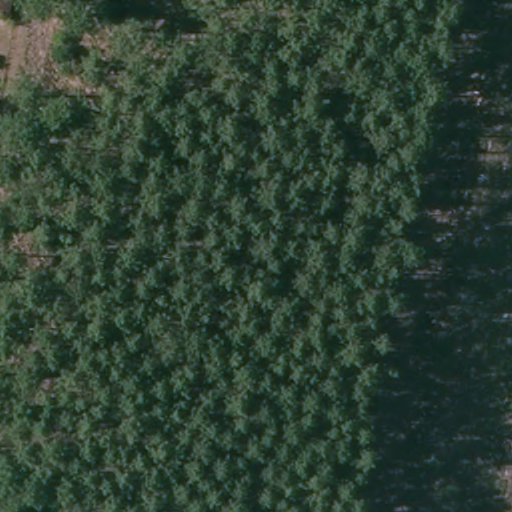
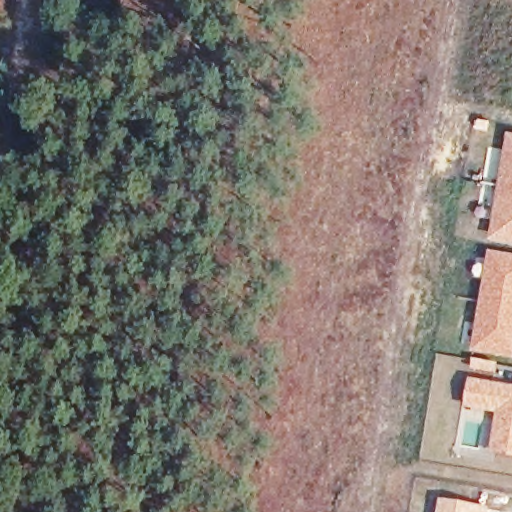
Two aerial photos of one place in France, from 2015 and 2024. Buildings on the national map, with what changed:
unchanged [(10,17),(0,16),(0,0),(13,0),(10,17)]
new [(503,148),(506,129),(512,130),(512,241),(488,237),(495,185),(481,182),(487,145),(503,148)]
new [(512,254),(512,360),(470,352),(486,250),(512,254)]
new [(512,385),(512,457),(487,452),(495,415),(461,407),(467,376),(512,385)]
new [(487,507),(486,512),(436,512),(439,498),(487,507)]

